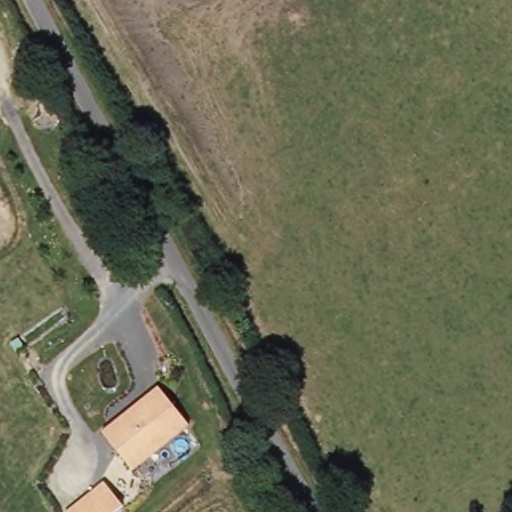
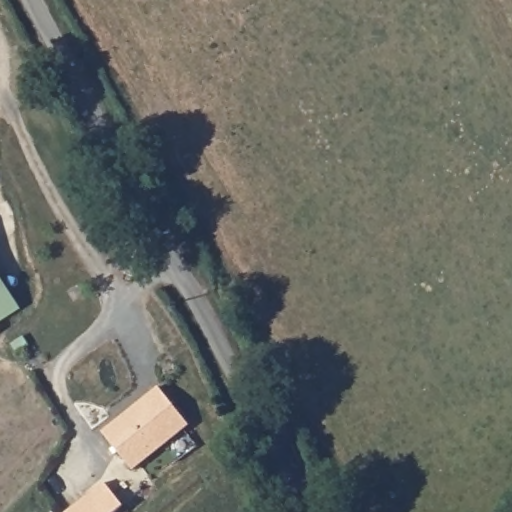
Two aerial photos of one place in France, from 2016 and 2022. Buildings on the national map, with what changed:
new [(0,320),(0,277),(21,306),(0,320)]
unchanged [(154,388),(185,426),(129,472),(98,435),(154,388)]
unchanged [(118,512),(67,512),(106,481),(126,505),(118,512)]

